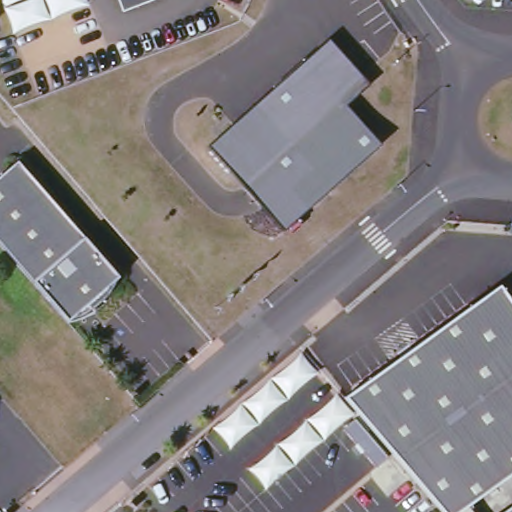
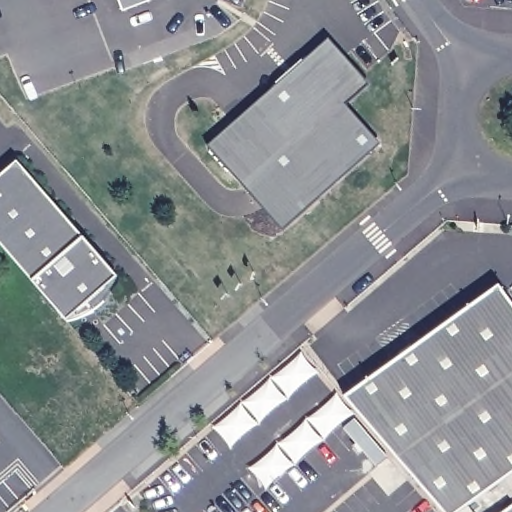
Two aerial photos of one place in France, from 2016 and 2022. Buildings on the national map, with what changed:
unchanged [(88,7),(11,35),(0,3),(0,0),(86,0),(88,7)]
unchanged [(125,13),(120,0),(161,0),(125,13)]
unchanged [(264,107),(335,47),(369,87),(346,107),(379,147),(323,202),(320,198),(286,233),(214,150),(211,146),(236,125),(261,104),(264,107)]
unchanged [(119,277),(118,280),(115,285),(113,289),(109,293),(106,297),(103,301),(99,304),(95,307),(91,310),(87,305),(68,322),(0,244),(0,177),(18,161),(119,277)]
unchanged [(494,285),(512,310),(512,471),(457,510),(455,512),(438,512),(340,397),(494,285)]
unchanged [(512,512),(501,512),(512,504),(512,512)]
unchanged [(458,512),(455,512),(457,510),(458,512)]

